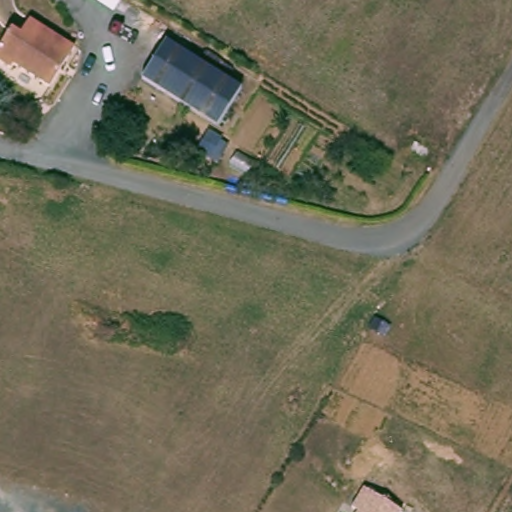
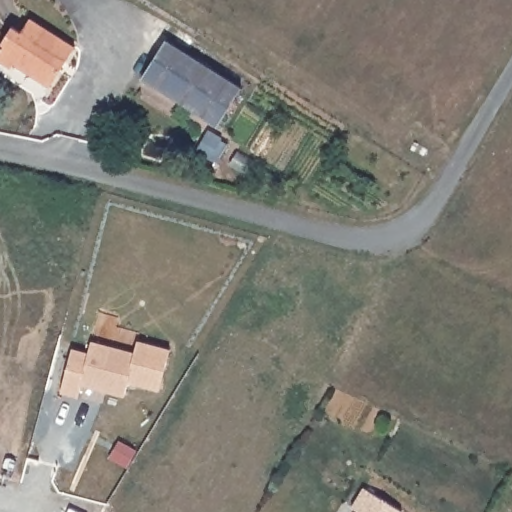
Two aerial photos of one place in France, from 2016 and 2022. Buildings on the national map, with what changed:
unchanged [(20,31),(29,15),(75,43),(50,81),(14,60),(11,65),(0,58),(0,43),(11,25),(20,31)]
unchanged [(183,49),(241,86),(217,124),(160,88),(141,76),(165,38),(183,49)]
new [(71,347),(88,351),(91,340),(134,352),(137,338),(170,347),(159,388),(128,379),(125,393),(81,382),(78,396),(60,391),(71,347)]
unchanged [(402,511),(401,512),(355,512),(357,510),(351,506),(363,487),(402,511)]

